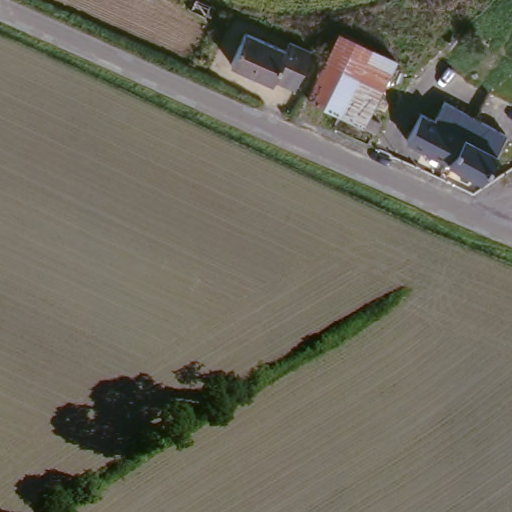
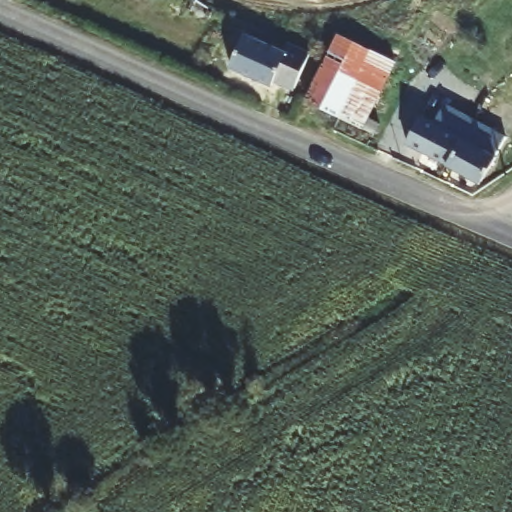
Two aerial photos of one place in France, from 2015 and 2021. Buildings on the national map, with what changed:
unchanged [(372,96),(383,101),(379,109),(368,104),(363,115),(374,120),(368,132),(303,99),(335,34),(388,60),(372,96)]
unchanged [(310,51),(293,88),(274,80),(272,85),(231,67),(246,35),(283,53),(289,41),(310,51)]
unchanged [(505,137),(481,182),(406,142),(430,98),(505,137)]

